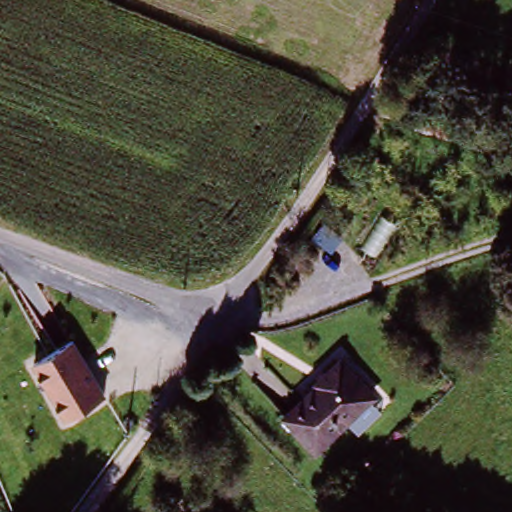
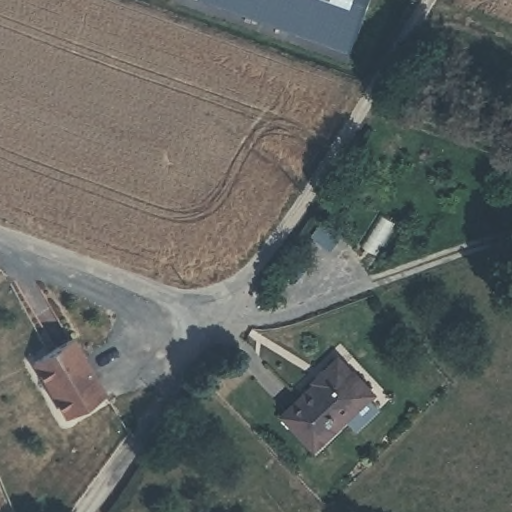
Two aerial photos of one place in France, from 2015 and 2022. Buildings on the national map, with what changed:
new [(352,50),(215,0),(370,0),(352,50)]
unchanged [(42,362),(80,340),(111,392),(72,412),(42,362)]
unchanged [(373,392),(320,452),(285,422),(322,379),(320,377),(336,359),(373,392)]

